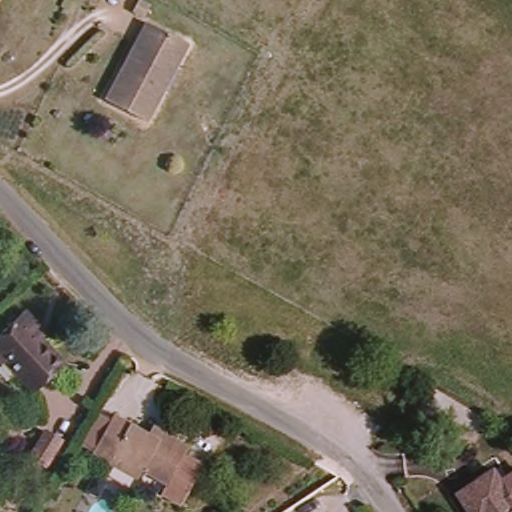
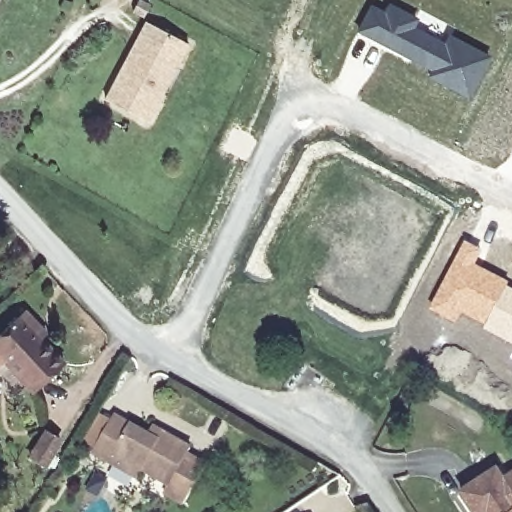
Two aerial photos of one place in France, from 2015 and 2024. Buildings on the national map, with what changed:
new [(370,2),(382,9),(387,0),(419,17),(416,26),(443,41),(448,31),(492,55),(470,98),(425,76),(428,70),(355,30),(370,2)]
unchanged [(150,124),(107,102),(123,70),(138,40),(146,24),(189,45),(177,69),(166,91),(150,124)]
new [(464,241),(482,250),(475,265),(509,283),(508,285),(483,327),(462,314),(456,324),(429,309),(464,241)]
new [(483,327),(508,285),(512,287),(512,345),(483,329),(483,327)]
unchanged [(0,363),(0,339),(18,323),(25,316),(46,338),(39,346),(62,370),(32,398),(0,363)]
unchanged [(150,435),(155,428),(194,450),(191,456),(209,466),(187,505),(168,493),(172,486),(147,471),(142,479),(97,453),(99,450),(85,441),(101,414),(115,422),(118,417),(150,435)]
unchanged [(57,442),(42,468),(28,459),(43,434),(57,442)]
unchanged [(494,472),(502,483),(512,476),(512,512),(472,512),(460,495),(494,472)]

